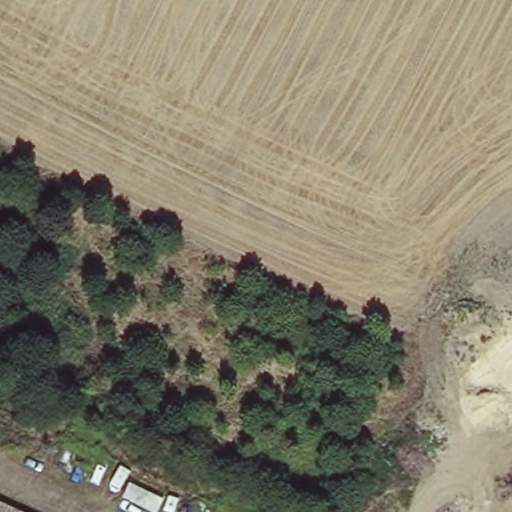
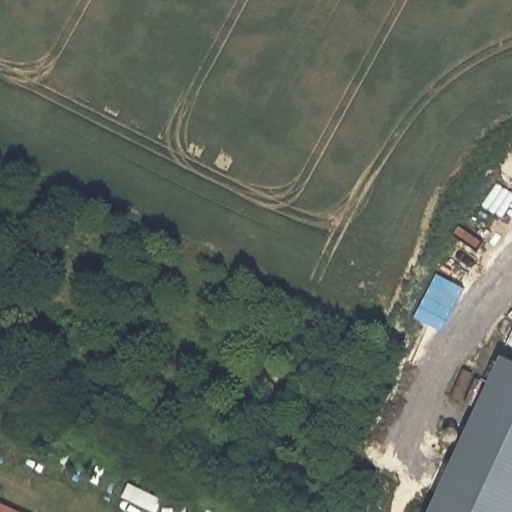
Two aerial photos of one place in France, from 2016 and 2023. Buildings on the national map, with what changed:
new [(507,358),(512,360),(512,512),(432,512),(507,358)]
unchanged [(0,504),(17,512),(0,512),(0,504)]

